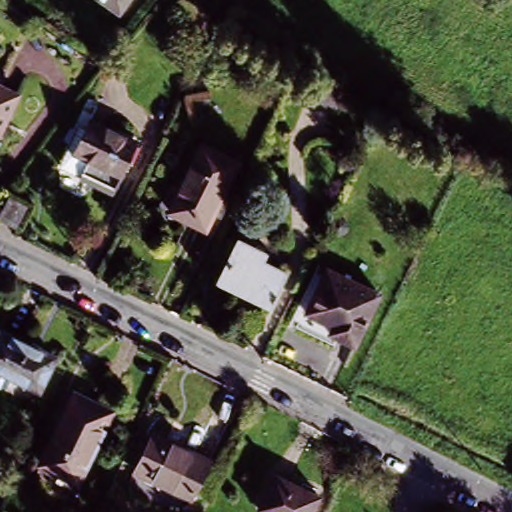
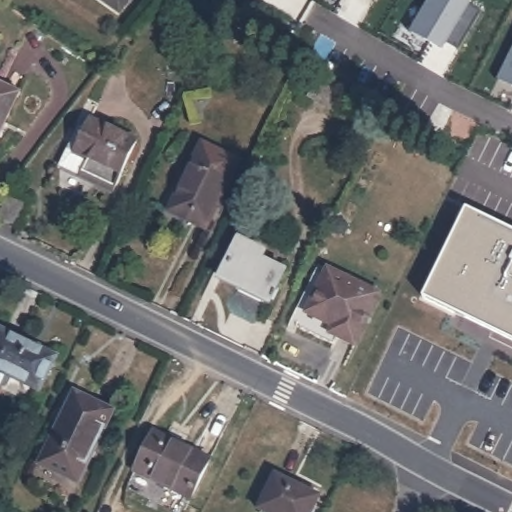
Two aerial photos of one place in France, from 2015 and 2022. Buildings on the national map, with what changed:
unchanged [(98,0),(132,0),(120,16),(98,0)]
new [(410,29),(428,0),(469,0),(470,0),(468,4),(480,11),(458,49),(445,41),(442,48),(429,40),(410,29)]
new [(497,78),(512,47),(512,85),(497,78)]
unchanged [(343,91),(329,116),(302,100),(317,75),(343,91)]
unchanged [(0,134),(0,86),(19,95),(0,134)]
unchanged [(94,120),(141,144),(140,147),(117,193),(83,177),(85,175),(65,165),(71,152),(82,129),(88,132),(92,123),(94,120)]
unchanged [(200,230),(165,212),(199,144),(235,163),(200,230)]
unchanged [(16,228),(0,220),(0,214),(8,197),(26,206),(16,228)]
new [(512,231),(512,340),(424,298),(466,209),(512,231)]
unchanged [(263,260),(260,268),(281,279),(265,310),(217,285),(236,246),(263,260)]
unchanged [(380,293),(355,344),(338,335),(342,328),(307,310),(330,268),(380,293)]
unchanged [(53,359),(37,391),(0,373),(0,333),(53,359)]
unchanged [(75,479),(40,461),(73,393),(110,411),(75,479)]
unchanged [(150,434),(205,462),(187,501),(131,473),(150,434)]
unchanged [(272,478),(316,499),(310,512),(255,512),(272,478)]

